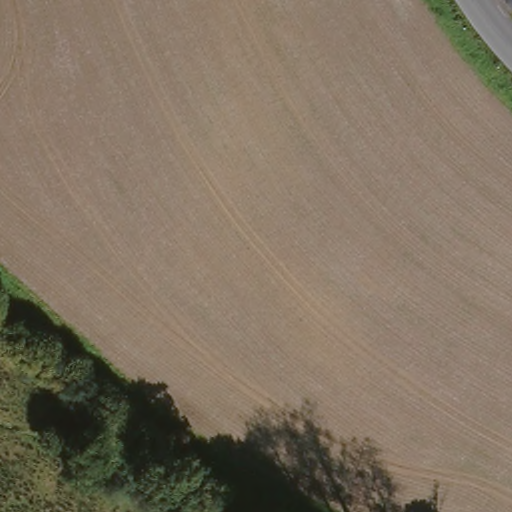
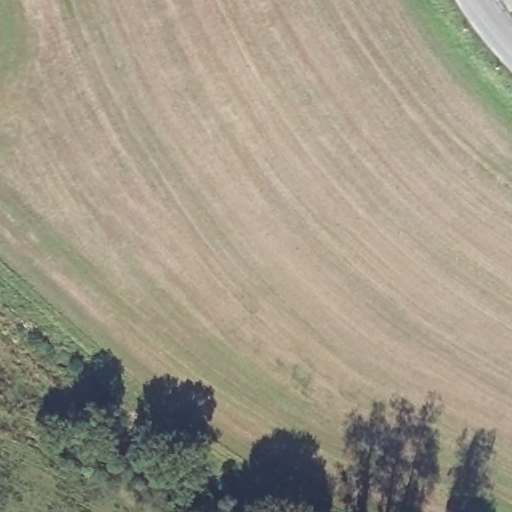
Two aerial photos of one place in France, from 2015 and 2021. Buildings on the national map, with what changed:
unchanged [(512,0),(508,2),(507,0),(512,0)]

